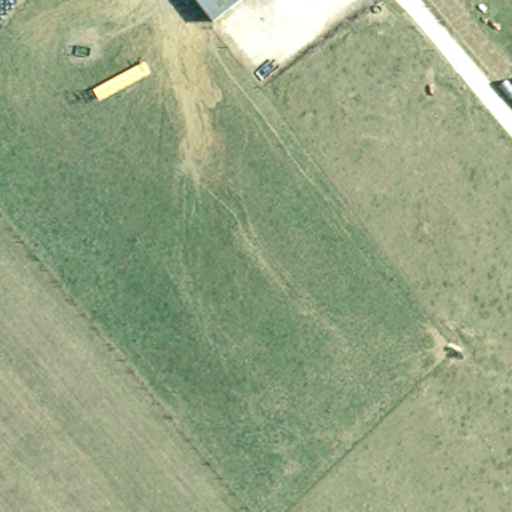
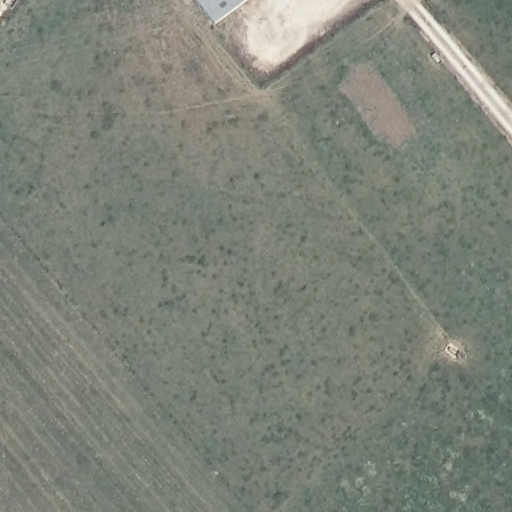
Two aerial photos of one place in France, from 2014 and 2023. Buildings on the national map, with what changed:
unchanged [(197,0),(244,0),(215,22),(197,0)]

